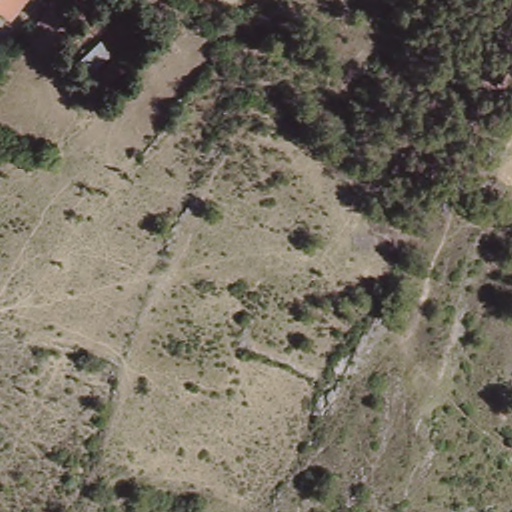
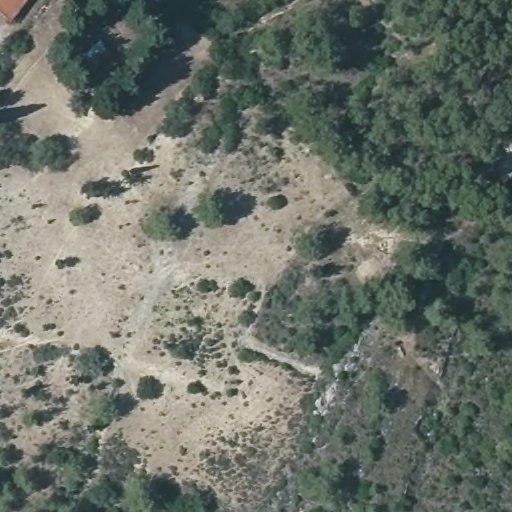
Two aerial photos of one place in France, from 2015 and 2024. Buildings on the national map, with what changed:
unchanged [(0,16),(0,0),(28,0),(9,24),(0,16)]
unchanged [(76,64),(87,53),(94,59),(108,43),(118,53),(104,68),(94,80),(76,64)]

